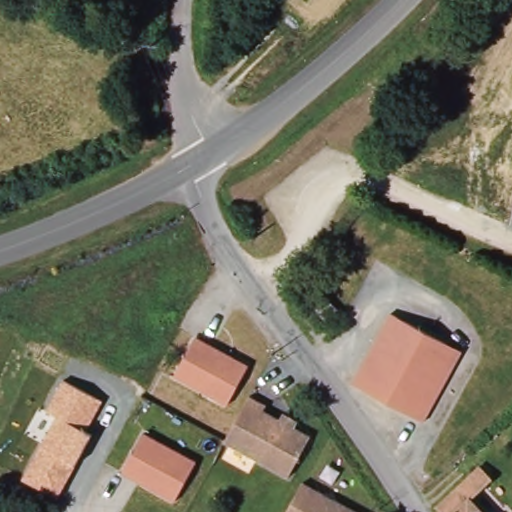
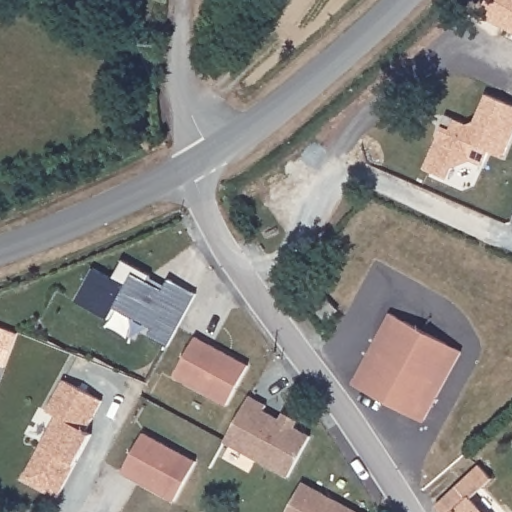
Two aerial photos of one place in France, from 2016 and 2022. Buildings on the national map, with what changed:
new [(487,0),(512,0),(512,30),(480,12),(487,0)]
new [(512,136),(503,156),(490,150),(484,165),(471,161),(454,165),(447,179),(425,167),(443,126),(451,129),(455,119),(466,124),(475,121),(487,95),(512,105),(512,136)]
new [(113,278),(123,260),(151,275),(150,277),(165,286),(169,279),(197,295),(168,347),(148,337),(153,328),(115,308),(109,320),(76,301),(94,268),(113,278)]
unchanged [(385,313),(456,352),(418,422),(347,384),(385,313)]
unchanged [(250,366),(231,404),(180,377),(196,340),(250,366)]
unchanged [(55,417),(46,412),(63,380),(103,401),(87,432),(90,435),(76,463),(57,497),(23,481),(55,417)]
unchanged [(264,405),(261,411),(277,418),(281,412),(295,422),(293,427),(308,436),(286,478),(221,443),(247,396),(264,405)]
unchanged [(197,461),(176,499),(126,472),(144,432),(197,461)]
unchanged [(492,479),(471,500),(483,512),(441,512),(436,507),(480,466),(492,479)]
unchanged [(283,512),(299,482),(354,512),(283,512)]

